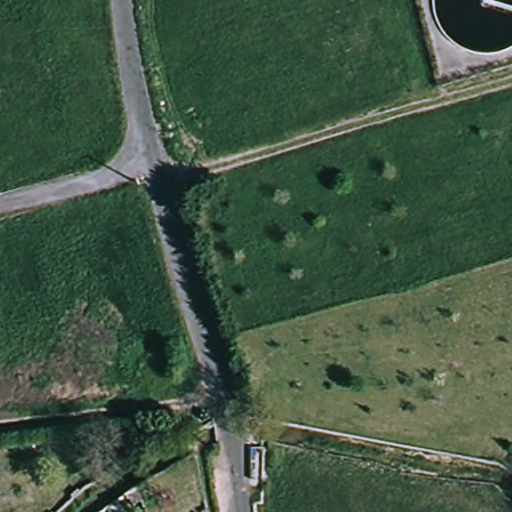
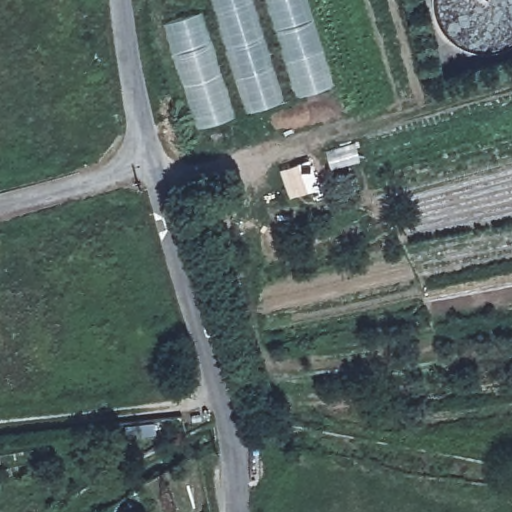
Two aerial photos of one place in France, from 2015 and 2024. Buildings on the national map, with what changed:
new [(209,0),(251,0),(282,101),(242,112),(209,0)]
new [(332,85),(292,96),(263,0),(306,0),(332,85)]
new [(199,11),(233,116),(195,127),(161,24),(199,11)]

